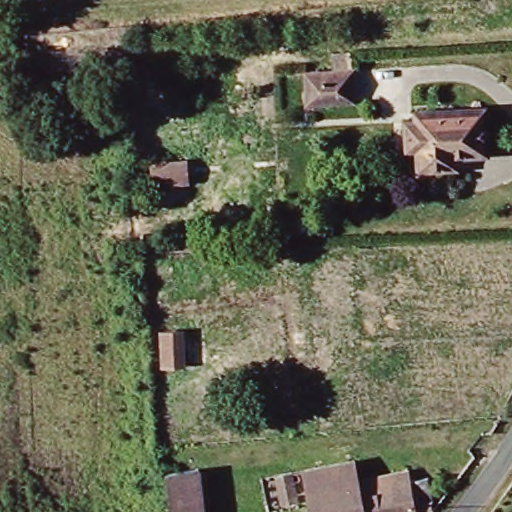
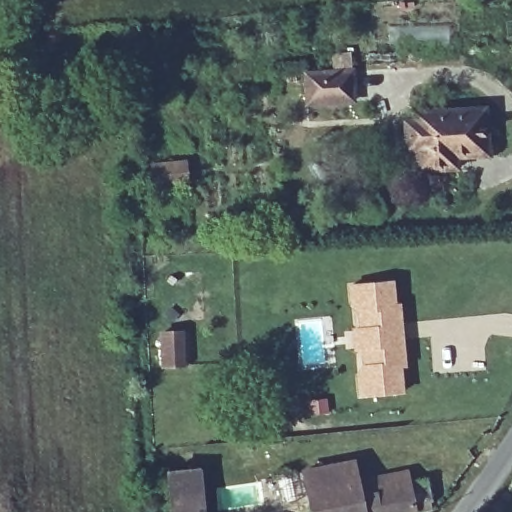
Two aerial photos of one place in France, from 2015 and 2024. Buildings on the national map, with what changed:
unchanged [(316,71),(359,71),(360,77),(359,86),(360,99),(316,100),(315,89),(315,82),(316,71)]
unchanged [(491,104),(494,149),(470,151),(471,163),(428,167),(427,147),(417,149),(412,119),(424,117),(423,107),(491,104)]
unchanged [(146,176),(180,174),(181,195),(147,196),(146,176)]
new [(397,302),(402,302),(404,323),(405,332),(407,362),(402,363),(405,388),(364,392),(362,371),(368,362),(367,345),(360,346),(358,326),(365,326),(363,308),(356,302),(354,282),(396,278),(397,302)]
new [(184,330),(187,362),(167,364),(164,331),(184,330)]
unchanged [(355,466),(358,486),(406,477),(407,487),(432,485),(433,503),(428,512),(314,512),(310,488),(307,475),(355,466)]
unchanged [(174,473),(206,471),(208,512),(178,512),(174,473)]
unchanged [(281,507),(277,481),(291,480),(293,507),(281,507)]

